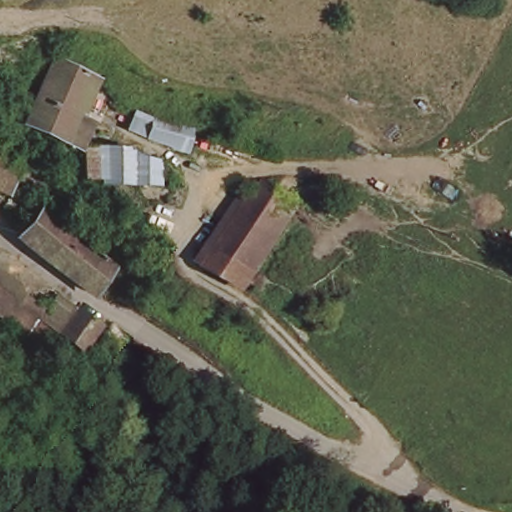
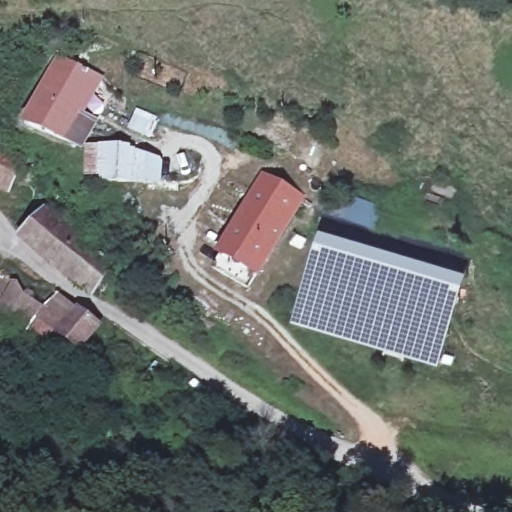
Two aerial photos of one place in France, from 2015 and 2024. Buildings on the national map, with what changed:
unchanged [(18,127),(63,51),(115,75),(83,121),(96,134),(136,132),(137,143),(163,144),(166,184),(109,187),(107,175),(64,172),(63,146),(18,127)]
unchanged [(196,136),(133,115),(137,101),(201,119),(196,136)]
unchanged [(19,144),(0,188),(0,136),(19,144)]
new [(336,190),(389,207),(379,231),(326,211),(336,190)]
unchanged [(251,268),(213,245),(248,194),(283,216),(251,268)]
unchanged [(45,210),(110,264),(98,282),(73,265),(48,251),(28,230),(45,210)]
new [(321,231),(467,274),(440,367),(294,325),(321,231)]
unchanged [(0,284),(23,293),(13,317),(0,311),(0,284)]
unchanged [(27,338),(42,302),(68,316),(50,349),(27,338)]

